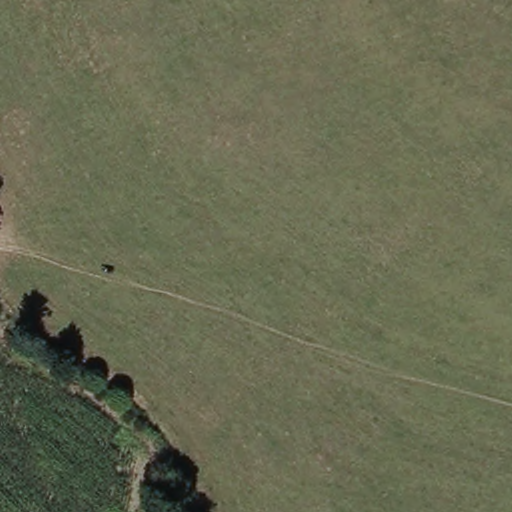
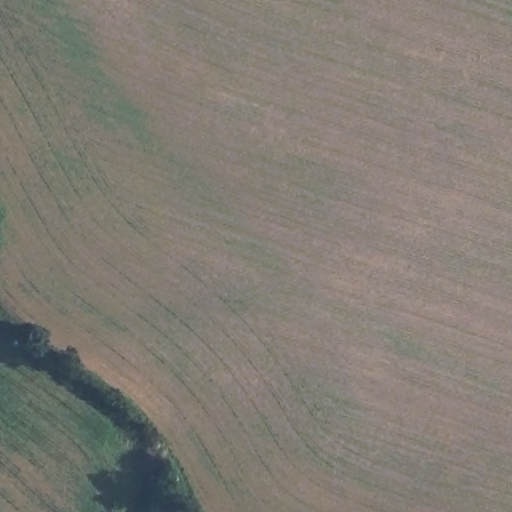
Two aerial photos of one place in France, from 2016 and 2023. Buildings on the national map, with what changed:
[]

